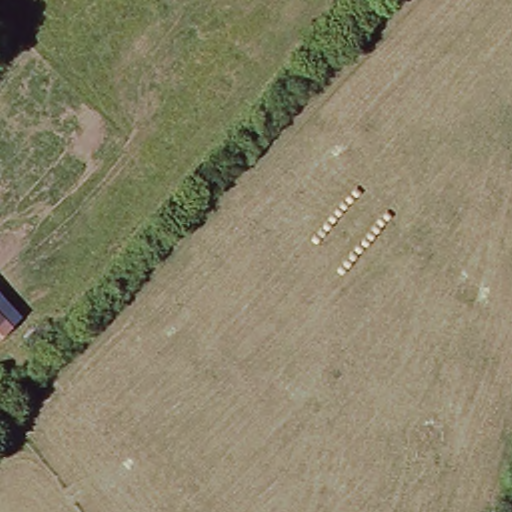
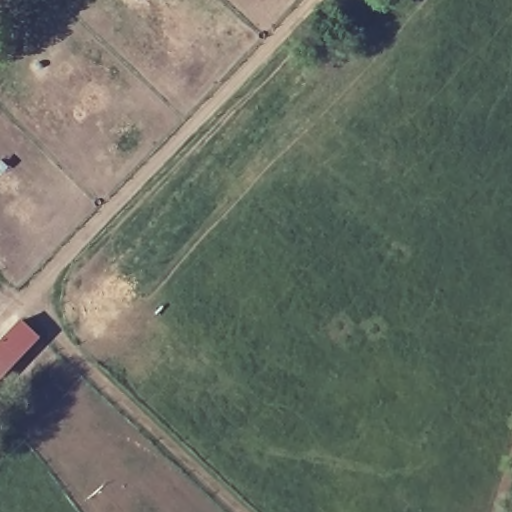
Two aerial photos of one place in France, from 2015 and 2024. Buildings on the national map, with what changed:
demolished [(11,318),(15,322),(0,336),(0,291),(19,311),(11,318)]
new [(0,380),(0,342),(21,320),(40,339),(0,380)]

